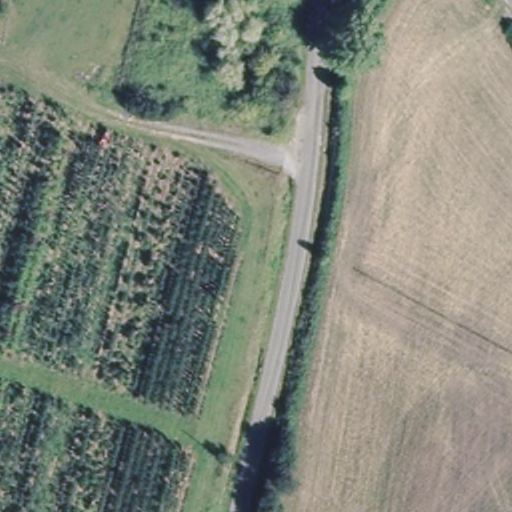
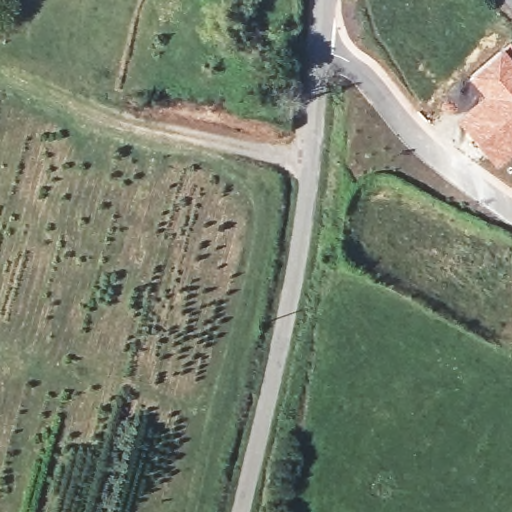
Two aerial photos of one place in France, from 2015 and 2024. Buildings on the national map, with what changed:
new [(470,77),(504,48),(512,58),(512,154),(498,166),(459,119),(485,96),(470,77)]

